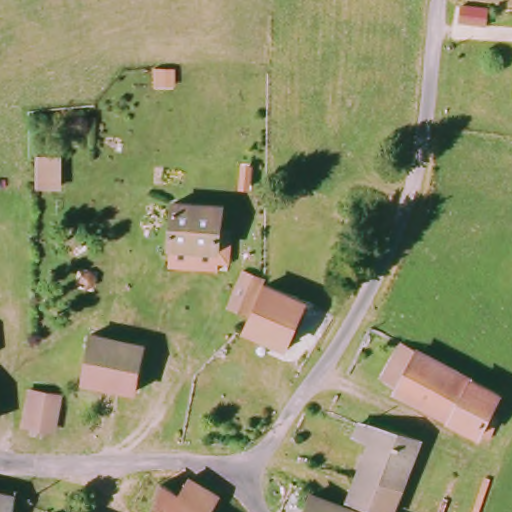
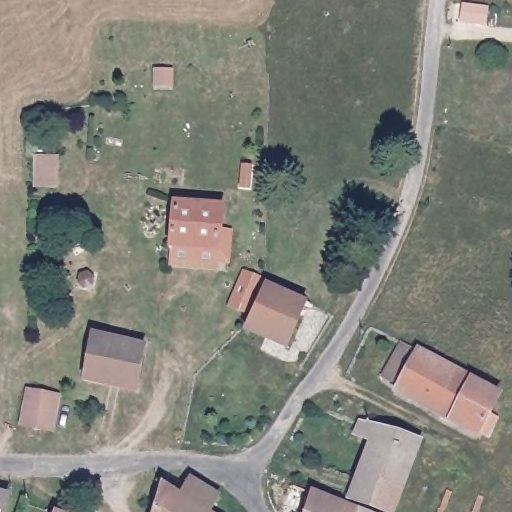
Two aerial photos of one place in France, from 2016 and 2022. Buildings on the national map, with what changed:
unchanged [(487,25),(461,23),(463,7),(488,9),(487,25)]
unchanged [(57,185),(48,185),(34,185),(34,155),(48,155),(56,156),(57,185)]
unchanged [(227,256),(218,256),(217,265),(168,261),(173,197),(220,202),(219,224),(229,225),(227,256)]
unchanged [(228,304),(231,297),(240,276),(258,283),(249,304),(246,310),(228,304)]
unchanged [(289,343),(242,332),(265,283),(304,303),(289,343)]
unchanged [(144,340),(135,388),(105,382),(82,375),(91,332),(114,335),(144,340)]
unchanged [(412,356),(414,353),(495,393),(483,416),(493,420),(484,438),(475,434),(474,436),(392,396),(395,388),(379,382),(395,348),(412,356)]
unchanged [(17,429),(26,386),(56,393),(49,435),(17,429)]
unchanged [(387,506),(349,492),(361,440),(347,435),(354,418),(368,422),(421,438),(387,506)]
unchanged [(161,486),(178,497),(188,480),(214,499),(212,512),(153,512),(161,486)]
unchanged [(307,489),(373,512),(300,512),(307,489)]
unchanged [(8,494),(3,512),(0,512),(0,492),(8,494)]

